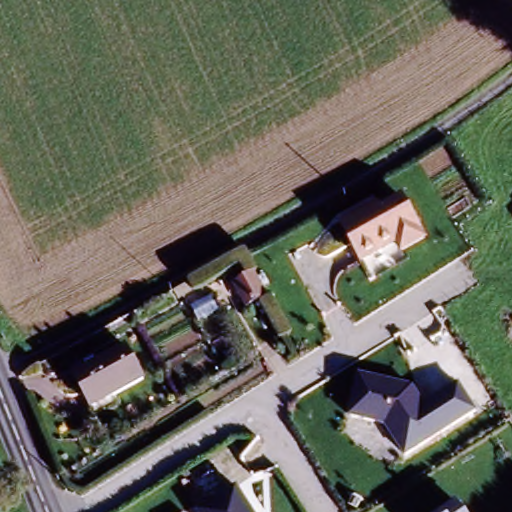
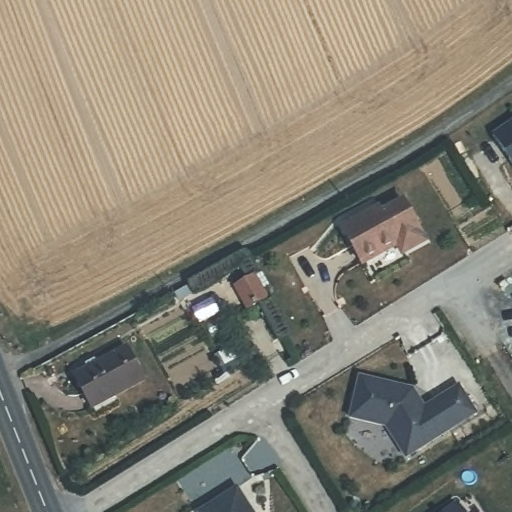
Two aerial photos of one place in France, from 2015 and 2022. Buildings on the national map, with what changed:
new [(512,123),(512,163),(494,135),(512,123)]
unchanged [(346,227),(402,198),(428,237),(402,252),(398,244),(370,261),(346,227)]
unchanged [(120,348),(136,380),(87,405),(70,373),(120,348)]
unchanged [(481,412),(412,456),(390,424),(355,418),(362,370),(419,389),(421,400),(437,401),(462,378),(481,412)]
unchanged [(236,482),(256,512),(207,512),(203,504),(236,482)]
unchanged [(469,512),(451,512),(463,504),(469,512)]

